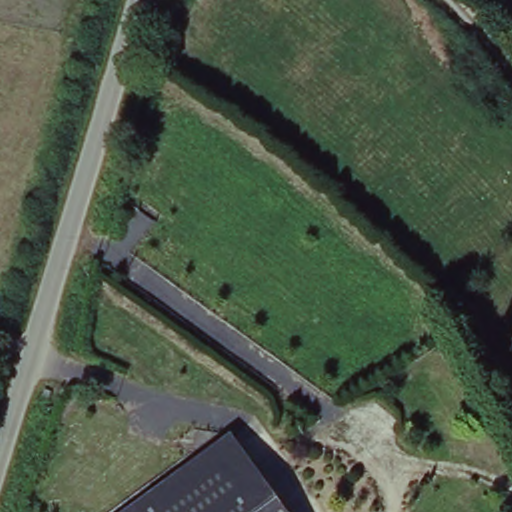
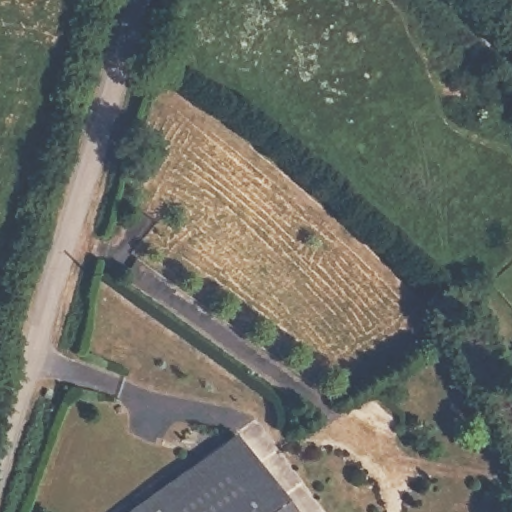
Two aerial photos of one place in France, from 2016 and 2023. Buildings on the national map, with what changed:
unchanged [(239,436),(295,512),(122,512),(239,436)]

